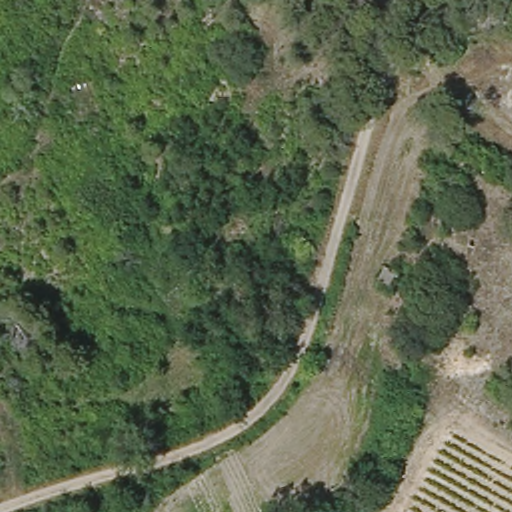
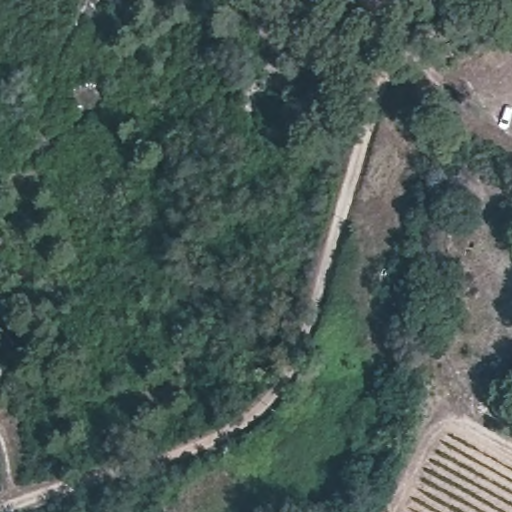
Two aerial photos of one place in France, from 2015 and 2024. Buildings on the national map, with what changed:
unchanged [(406,274),(397,290),(378,286),(387,267),(406,274)]

